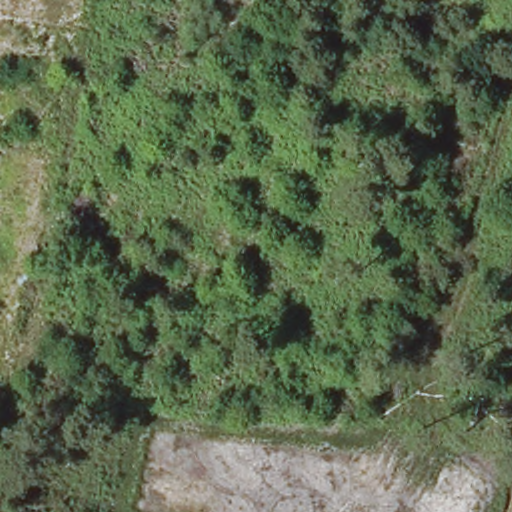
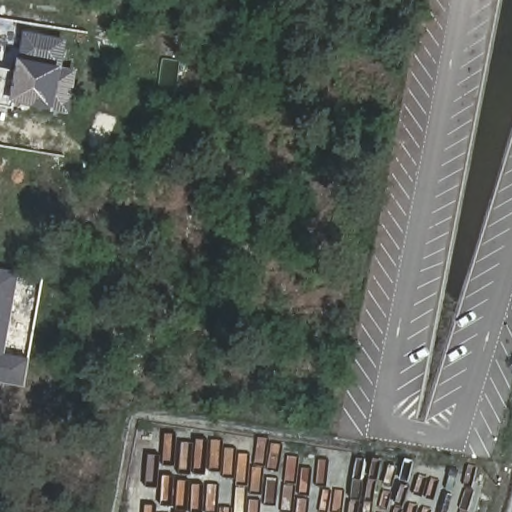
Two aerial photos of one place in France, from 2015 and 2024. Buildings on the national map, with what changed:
new [(16,71),(18,59),(24,33),(69,40),(64,68),(79,70),(71,114),(54,110),(14,103),(13,108),(0,105),(0,68),(16,71)]
new [(19,273),(5,355),(28,359),(24,388),(0,383),(0,269),(19,273)]

